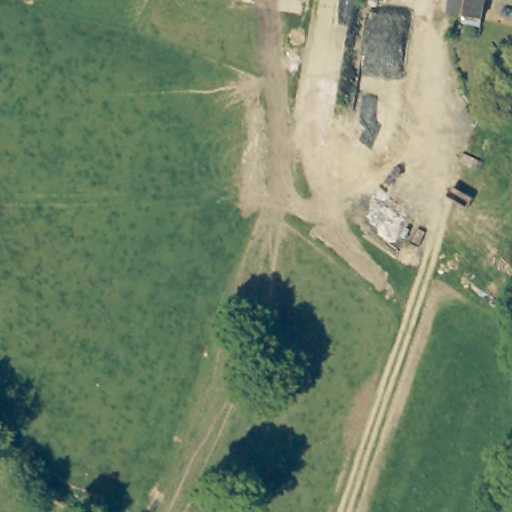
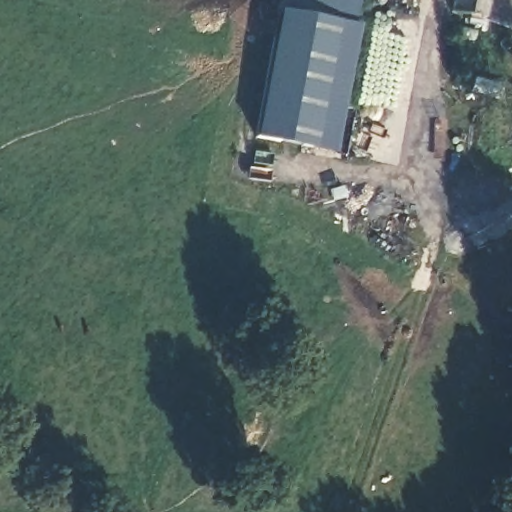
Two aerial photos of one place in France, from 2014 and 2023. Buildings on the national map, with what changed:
new [(336,22),(315,149),(255,139),(280,0),(359,0),(354,26),(336,22)]
unchanged [(455,17),(456,0),(482,0),(482,17),(455,17)]

